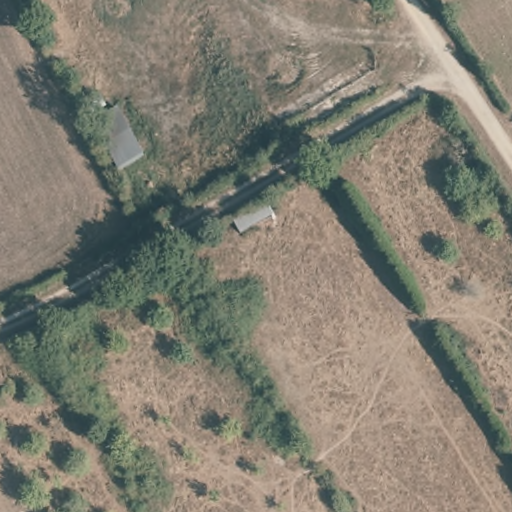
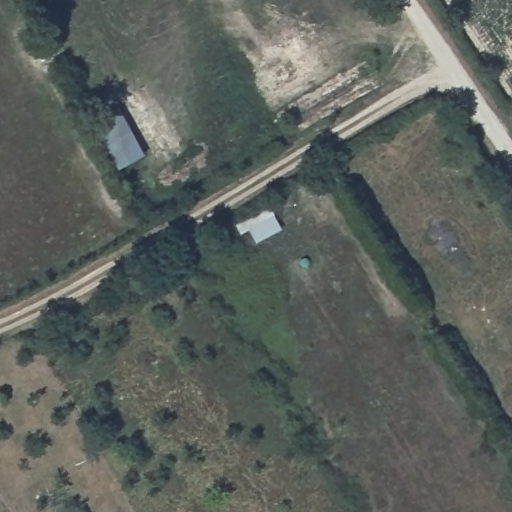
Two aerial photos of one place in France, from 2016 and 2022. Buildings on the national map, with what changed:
unchanged [(148,153),(118,169),(91,121),(120,106),(148,153)]
unchanged [(279,212),(243,232),(231,216),(264,196),(279,212)]

